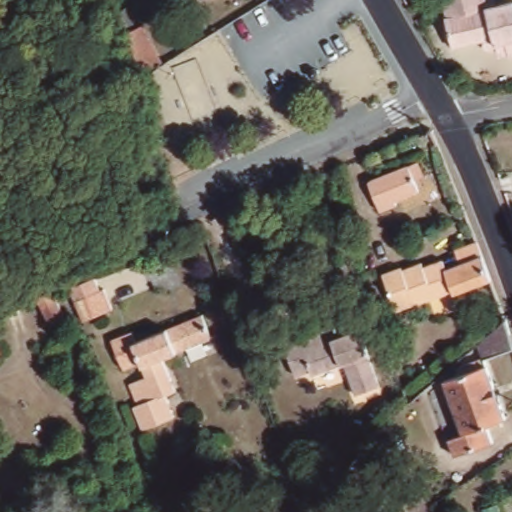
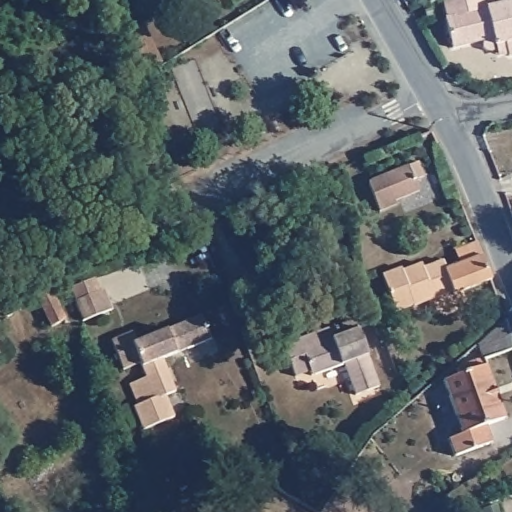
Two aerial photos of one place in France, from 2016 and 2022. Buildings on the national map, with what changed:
unchanged [(511,56),(507,44),(501,45),(500,49),(500,51),(497,52),(495,53),(493,53),(491,52),(490,51),(488,49),(487,47),(487,46),(487,44),(488,41),(488,40),(453,48),(447,20),(450,19),(445,0),(486,0),(488,10),(512,4),(512,56),(511,56)]
unchanged [(148,22),(167,65),(137,76),(124,34),(148,22)]
unchanged [(422,191),(397,202),(399,205),(383,212),(370,183),(370,182),(420,161),(426,177),(418,181),(422,191)]
unchanged [(417,308),(399,315),(385,279),(403,272),(405,277),(425,270),(426,274),(446,266),(450,275),(486,261),(495,284),(456,299),(456,297),(418,311),(417,308)]
unchanged [(81,325),(67,286),(102,278),(119,312),(81,325)]
unchanged [(67,313),(52,320),(33,291),(47,284),(67,313)]
unchanged [(160,360),(172,392),(164,395),(172,418),(141,430),(134,408),(137,406),(129,386),(145,379),(140,364),(124,370),(110,340),(131,331),(136,343),(201,317),(210,342),(160,360)]
unchanged [(510,419),(490,425),(495,442),(456,454),(451,437),(465,433),(448,380),(463,375),(462,368),(468,366),(467,364),(488,357),(485,343),(510,321),(512,328),(512,351),(490,359),(510,419)]
unchanged [(383,387),(360,396),(350,365),(316,377),(314,373),(301,378),(288,344),(338,326),(342,337),(362,329),(383,387)]

